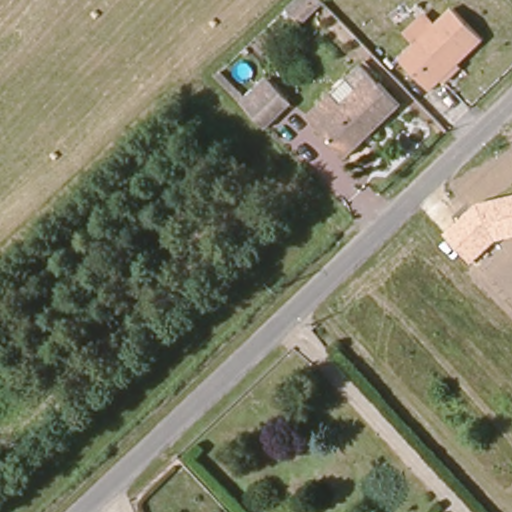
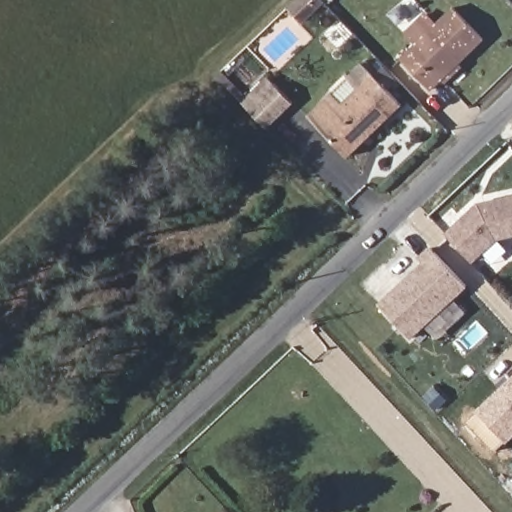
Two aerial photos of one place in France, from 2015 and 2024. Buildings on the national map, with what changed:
unchanged [(483,40),(430,89),(403,57),(454,9),(483,40)]
unchanged [(405,110),(353,161),(313,120),(335,98),(350,83),(365,69),(405,110)]
unchanged [(261,86),(286,112),(260,138),(234,111),(261,86)]
unchanged [(497,240),(472,263),(447,234),(478,204),(512,196),(512,237),(497,240)]
new [(421,263),(417,258),(431,246),(466,284),(409,337),(378,303),(421,263)]
new [(505,440),(477,410),(512,377),(512,434),(505,440)]

